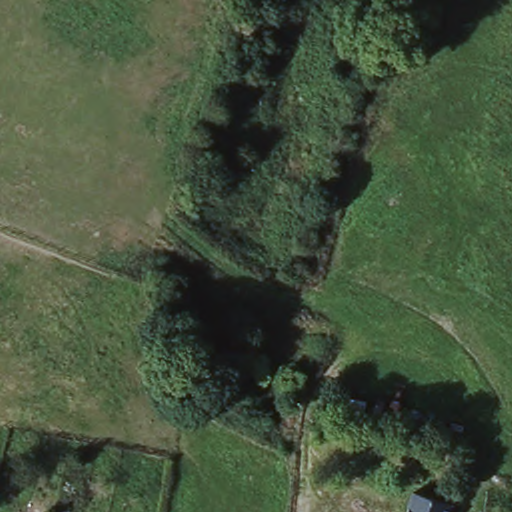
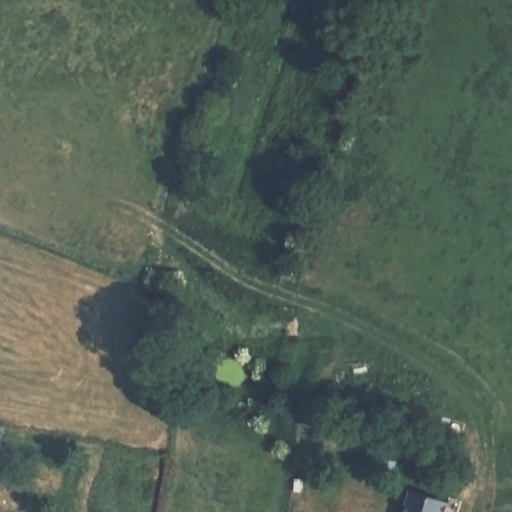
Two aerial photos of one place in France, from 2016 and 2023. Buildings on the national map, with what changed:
unchanged [(448,512),(407,512),(412,494),(450,504),(448,512)]

